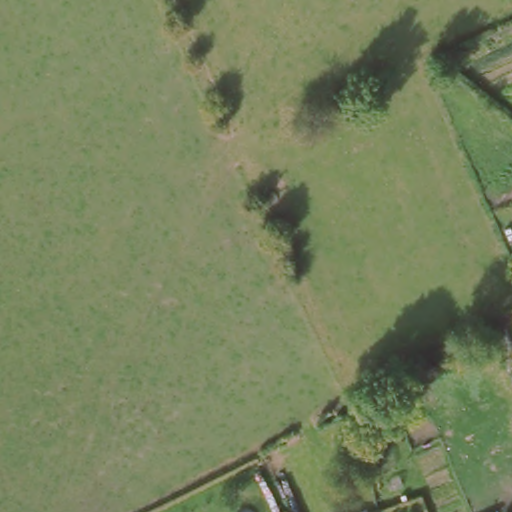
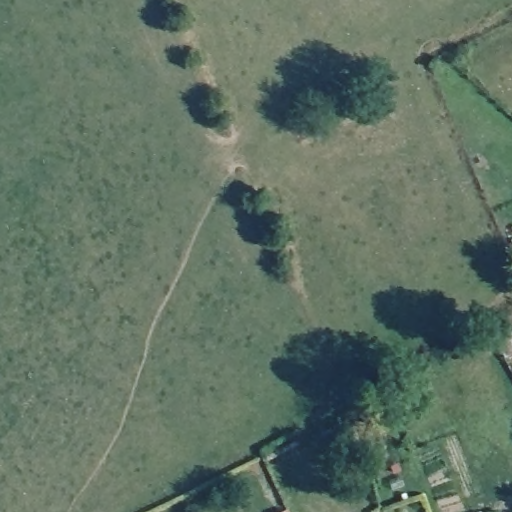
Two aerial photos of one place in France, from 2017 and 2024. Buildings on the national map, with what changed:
unchanged [(507,340),(512,351),(512,360),(504,364),(495,345),(507,340)]

